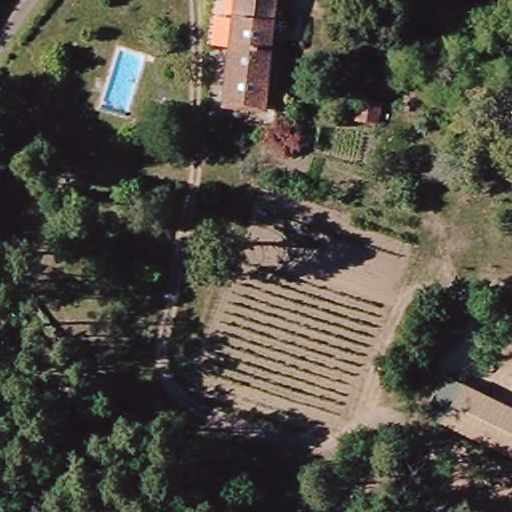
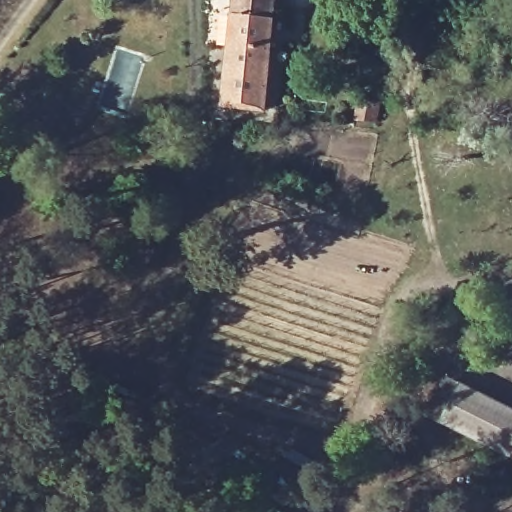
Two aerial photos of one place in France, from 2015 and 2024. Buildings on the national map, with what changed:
unchanged [(268,106),(225,102),(235,0),(279,0),(268,106)]
unchanged [(342,3),(355,2),(355,15),(342,16),(342,3)]
unchanged [(362,100),(382,101),(381,121),(361,120),(362,100)]
unchanged [(512,409),(512,460),(423,416),(442,375),(512,409)]

